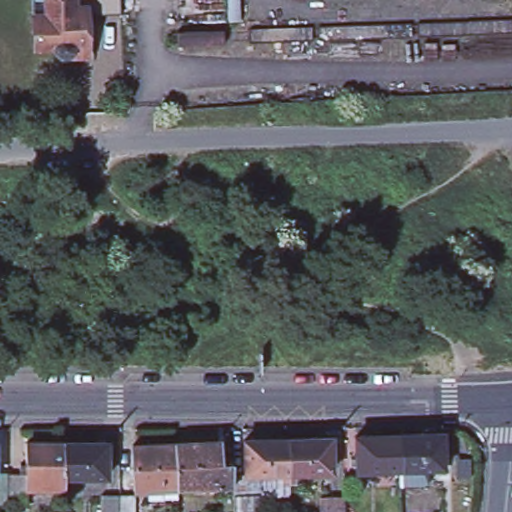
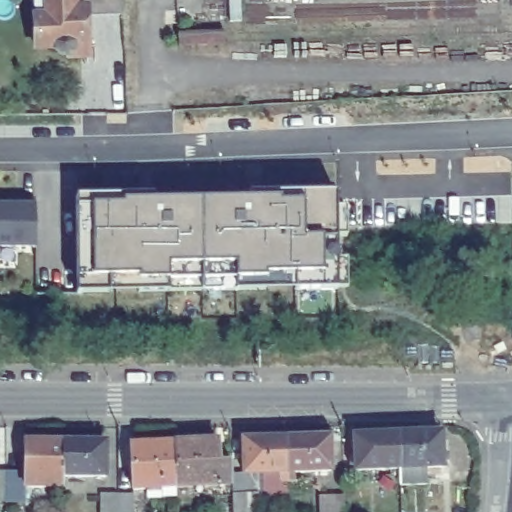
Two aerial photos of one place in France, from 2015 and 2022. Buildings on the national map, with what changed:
unchanged [(75,0),(75,11),(88,12),(88,50),(38,52),(37,0),(75,0)]
new [(35,280),(75,279),(74,202),(151,201),(151,206),(246,205),(246,199),(334,199),(338,292),(43,296),(35,296),(35,280)]
new [(19,203),(34,203),(34,250),(0,249),(0,209),(19,209),(19,203)]
unchanged [(398,485),(398,467),(356,468),(355,435),(359,435),(361,431),(371,430),(373,433),(397,433),(419,432),(422,429),(432,428),(433,431),(442,431),(442,466),(427,466),(427,484),(398,485)]
unchanged [(286,471),(284,437),(307,436),(310,432),(319,433),(323,436),(329,435),(331,470),(286,471)]
unchanged [(241,473),(242,438),(247,438),(249,435),(259,435),(264,438),(284,437),(286,471),(241,473)]
unchanged [(106,438),(107,451),(105,451),(105,475),(59,475),(59,440),(91,440),(93,438),(106,438)]
unchanged [(0,502),(0,471),(4,471),(25,472),(25,440),(59,440),(59,475),(59,485),(25,485),(25,502),(4,502),(0,502)]
unchanged [(226,485),(213,485),(168,486),(168,446),(168,441),(211,440),(211,462),(224,461),(226,485)]
unchanged [(168,446),(168,486),(127,488),(125,442),(168,441),(168,446)]
unchanged [(92,492),(110,492),(110,495),(126,495),(126,512),(93,512),(92,492)]
unchanged [(226,495),(251,494),(251,512),(226,512),(226,495)]
unchanged [(323,500),(348,498),(348,512),(324,512),(323,500)]

